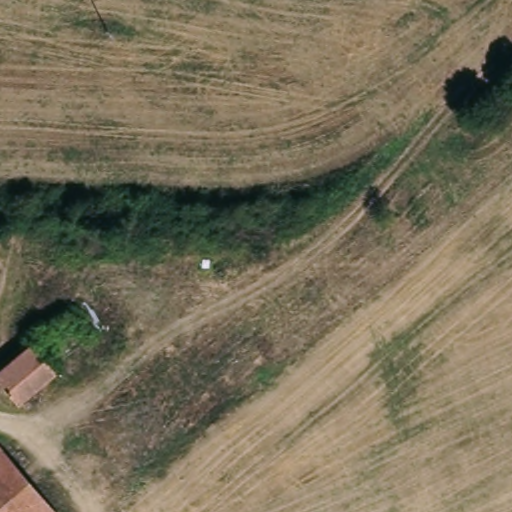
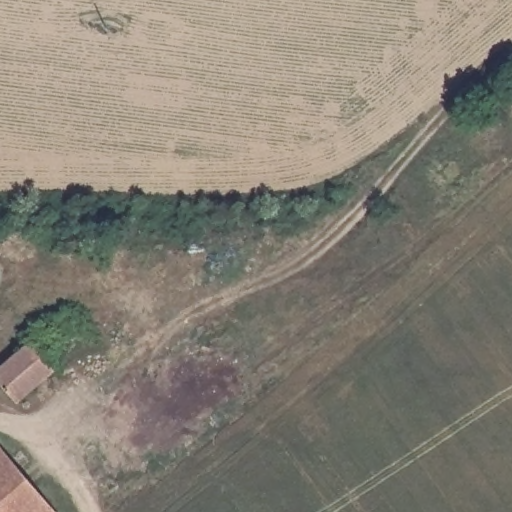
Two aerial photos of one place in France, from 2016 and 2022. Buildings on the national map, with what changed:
unchanged [(0,379),(0,369),(32,341),(56,369),(19,403),(0,379)]
unchanged [(57,512),(0,512),(0,442),(57,512)]

